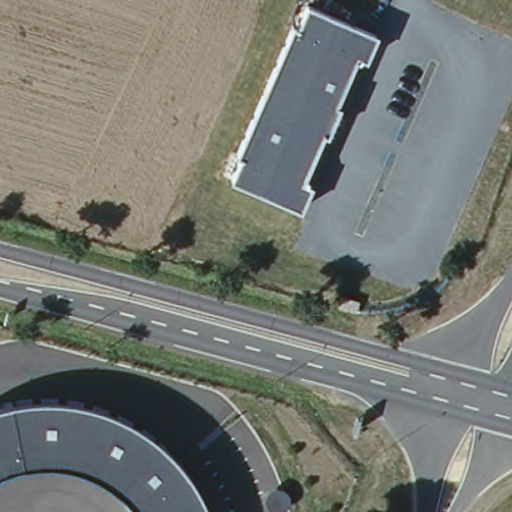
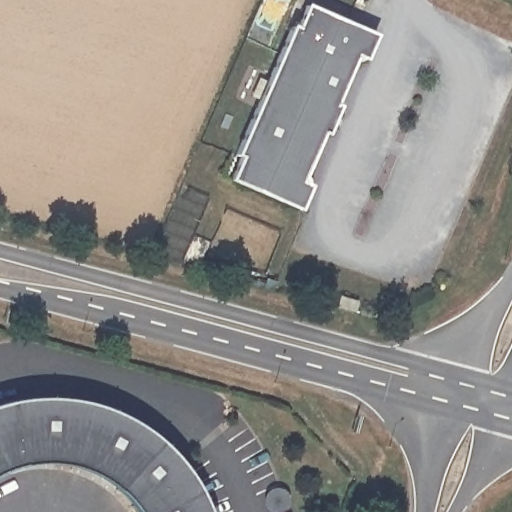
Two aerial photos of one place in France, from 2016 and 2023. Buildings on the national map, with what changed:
unchanged [(379,34),(369,58),(357,55),(335,106),(339,107),(326,136),(323,135),(302,182),(312,187),(301,210),(232,180),(243,157),(237,154),(292,27),(299,30),(308,5),(379,34)]
unchanged [(340,301),(359,306),(356,316),(338,311),(340,301)]
unchanged [(189,475),(206,506),(207,512),(0,512),(0,406),(6,404),(55,402),(93,408),(130,422),(168,448),(189,475)]

